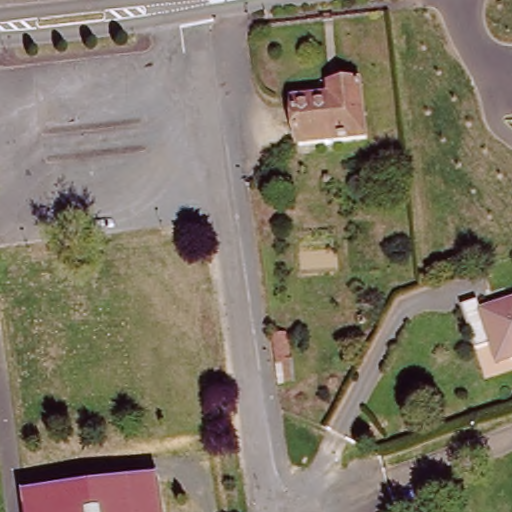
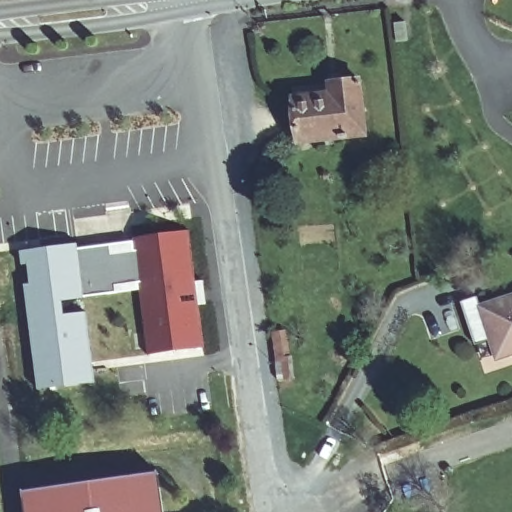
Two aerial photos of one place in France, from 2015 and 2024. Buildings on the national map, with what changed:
unchanged [(303,141),(297,87),(363,79),(370,133),(303,141)]
unchanged [(262,225),(255,176),(275,174),(282,222),(262,225)]
new [(205,346),(148,353),(140,290),(62,302),(64,316),(87,311),(97,382),(37,391),(20,252),(189,230),(205,346)]
unchanged [(492,340),(477,345),(462,302),(478,297),(481,306),(512,296),(512,354),(497,358),(492,340)]
unchanged [(358,310),(357,305),(362,303),(364,309),(358,310)]
unchanged [(282,377),(275,330),(290,328),(295,376),(282,377)]
unchanged [(23,486),(158,467),(163,512),(27,512),(23,486)]

